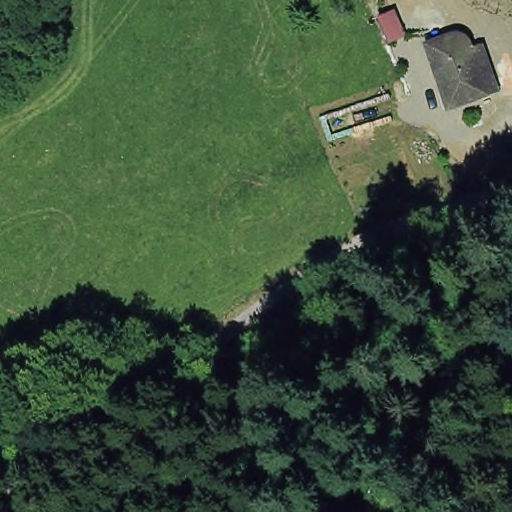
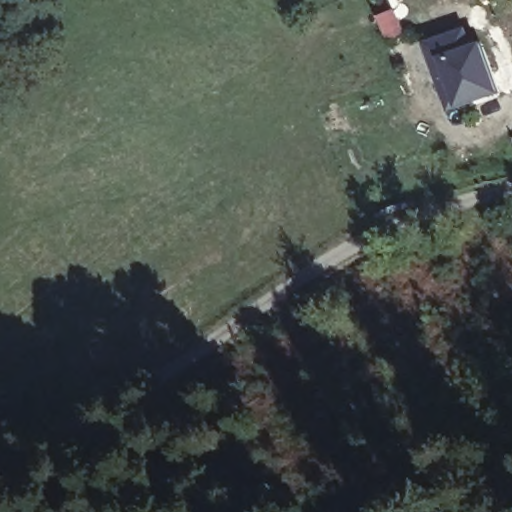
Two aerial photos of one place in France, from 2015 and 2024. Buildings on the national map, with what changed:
unchanged [(393,16),(403,39),(390,45),(379,21),(393,16)]
unchanged [(428,42),(455,33),(460,32),(466,34),(470,37),(472,45),(483,42),(494,72),(500,89),(472,99),(451,106),(440,75),(428,42)]

